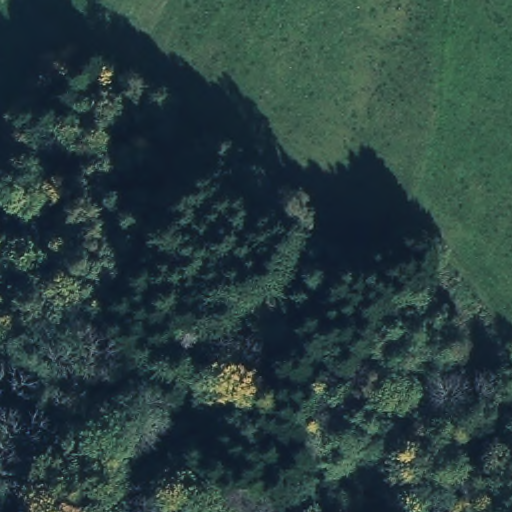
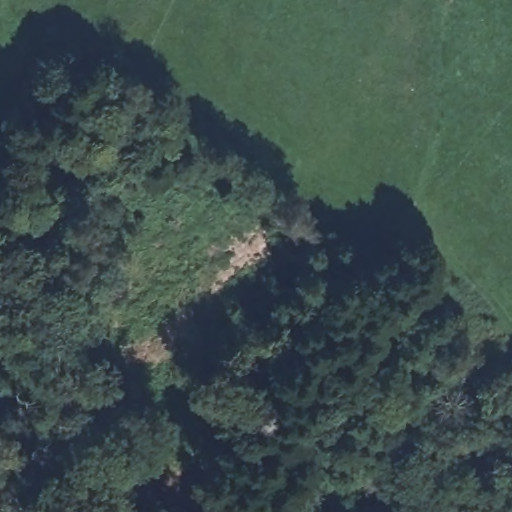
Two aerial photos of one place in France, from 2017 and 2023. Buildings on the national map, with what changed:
[]

